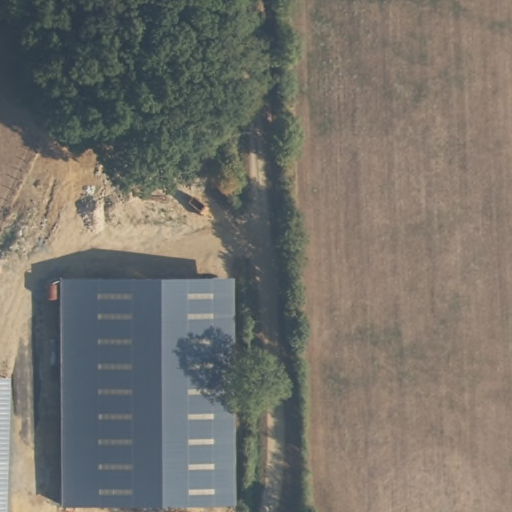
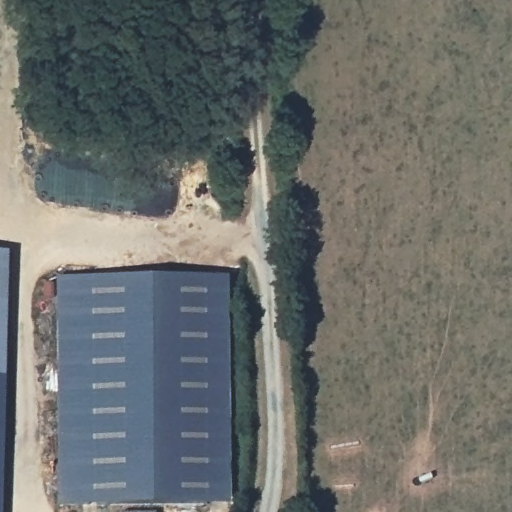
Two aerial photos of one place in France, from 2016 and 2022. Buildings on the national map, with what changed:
new [(9,377),(6,378),(0,378),(0,251),(11,252),(9,377)]
unchanged [(57,277),(232,277),(233,505),(61,506),(57,277)]
unchanged [(2,512),(0,512),(0,378),(6,378),(2,512)]

